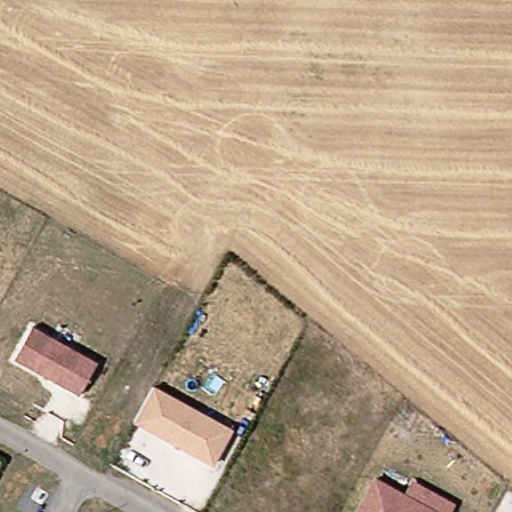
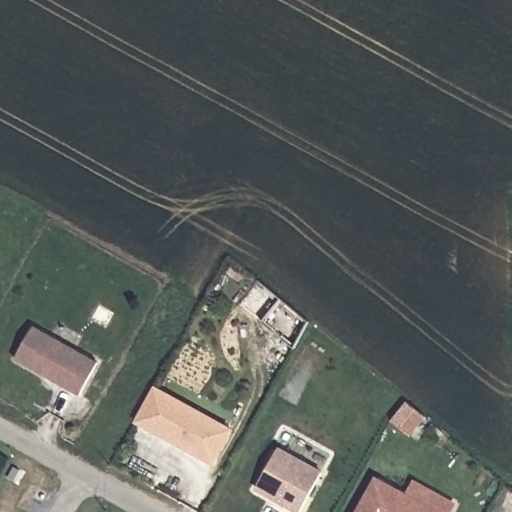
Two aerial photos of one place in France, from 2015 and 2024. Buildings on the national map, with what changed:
unchanged [(33,328),(97,363),(79,396),(15,360),(33,328)]
unchanged [(233,428),(217,464),(135,428),(151,392),(233,428)]
new [(408,402),(425,415),(409,435),(392,421),(408,402)]
new [(323,471),(301,512),(294,512),(255,490),(279,447),(323,471)]
unchanged [(375,475),(408,492),(413,481),(458,504),(454,512),(355,512),(375,475)]

